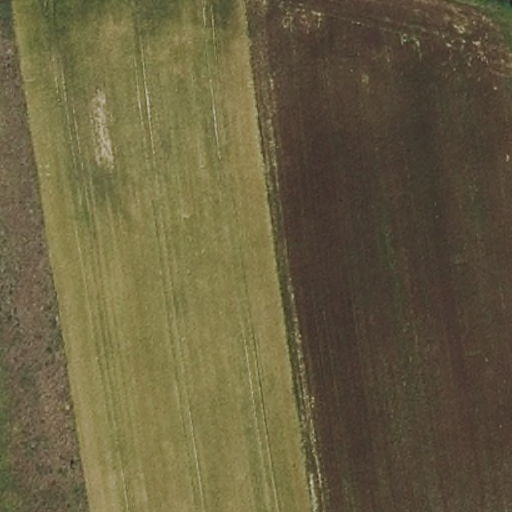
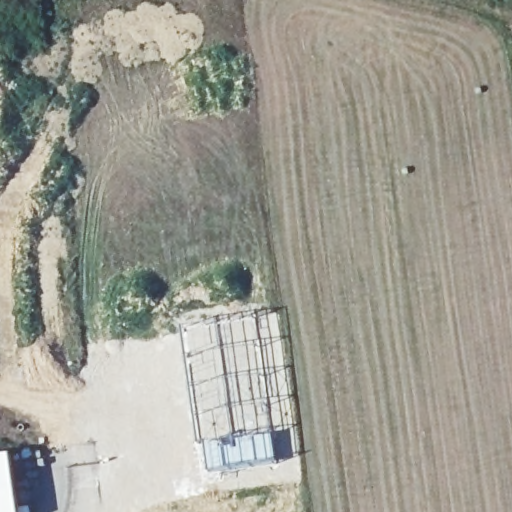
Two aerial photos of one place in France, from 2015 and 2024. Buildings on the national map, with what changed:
new [(20,508),(32,508),(33,512),(0,512),(0,456),(12,454),(20,508)]

